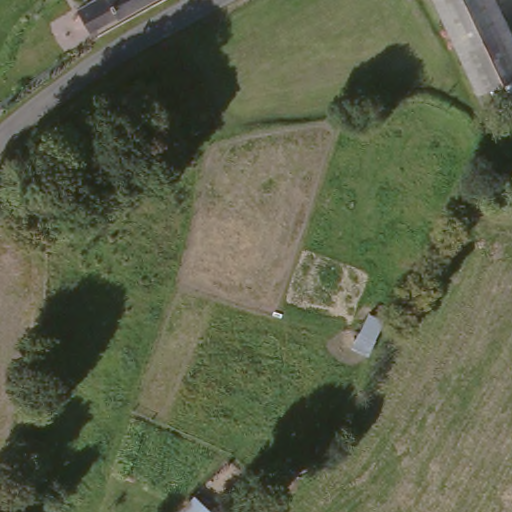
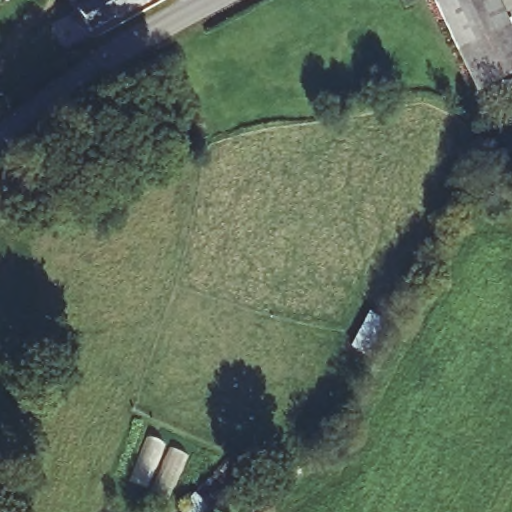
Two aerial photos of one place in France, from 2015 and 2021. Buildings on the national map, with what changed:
unchanged [(76,3),(83,0),(144,0),(90,28),(76,3)]
unchanged [(512,62),(474,79),(434,0),(492,0),(512,39),(512,62)]
unchanged [(214,511),(213,512),(181,512),(178,507),(195,491),(214,511)]

